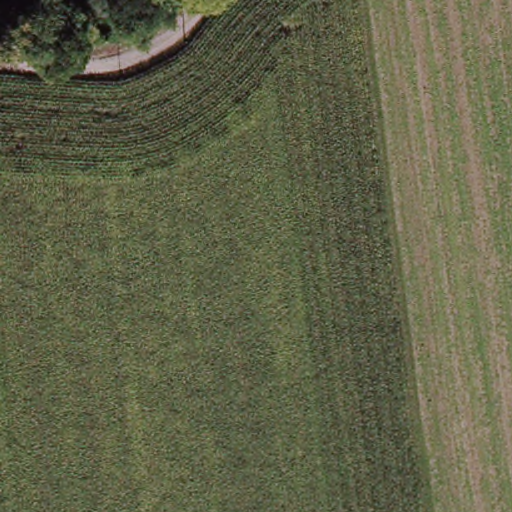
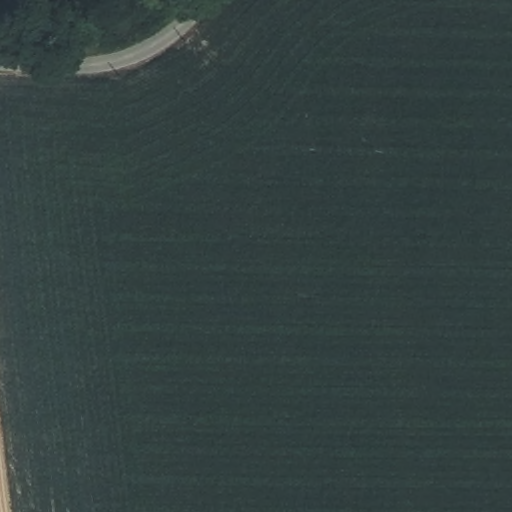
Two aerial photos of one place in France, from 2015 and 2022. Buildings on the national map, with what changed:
[]

